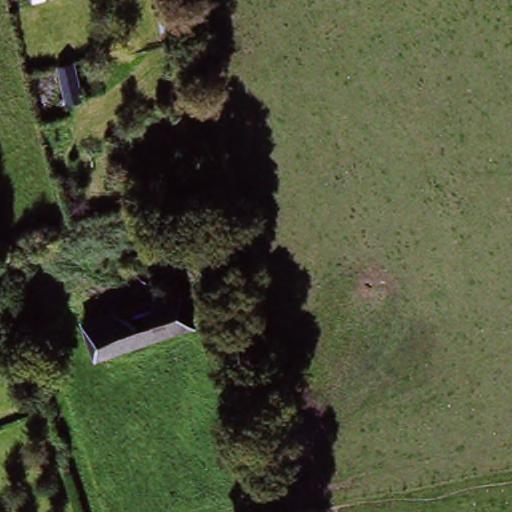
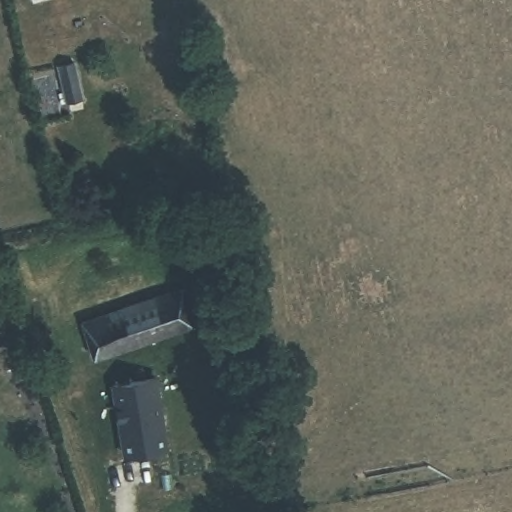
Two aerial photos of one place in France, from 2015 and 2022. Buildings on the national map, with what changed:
unchanged [(153,0),(180,0),(185,27),(157,35),(153,0)]
unchanged [(58,64),(74,60),(78,80),(62,83),(58,64)]
unchanged [(184,295),(195,328),(96,360),(85,325),(115,316),(156,303),(184,295)]
new [(161,386),(173,456),(131,463),(127,440),(129,440),(127,430),(125,430),(120,393),(161,386)]

